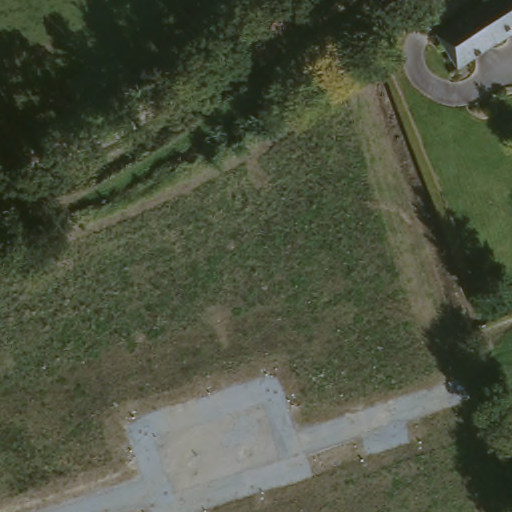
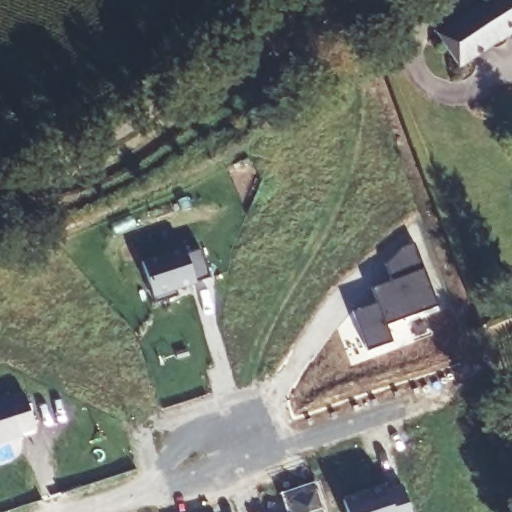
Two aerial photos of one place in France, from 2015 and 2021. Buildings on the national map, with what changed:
unchanged [(448,29),(468,16),(494,0),(512,0),(512,34),(469,61),(448,29)]
new [(368,350),(353,311),(377,303),(372,286),(392,280),(386,262),(406,244),(415,243),(438,306),(387,325),(392,340),(368,350)]
new [(144,260),(185,248),(195,282),(176,288),(178,295),(157,302),(144,260)]
new [(10,393),(12,397),(27,392),(39,426),(23,431),(24,435),(0,443),(0,396),(10,393)]

